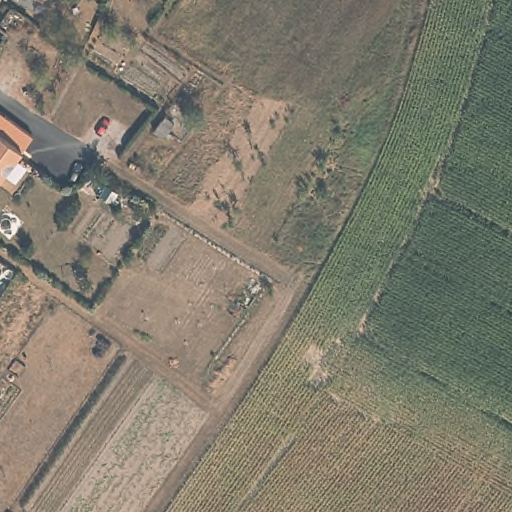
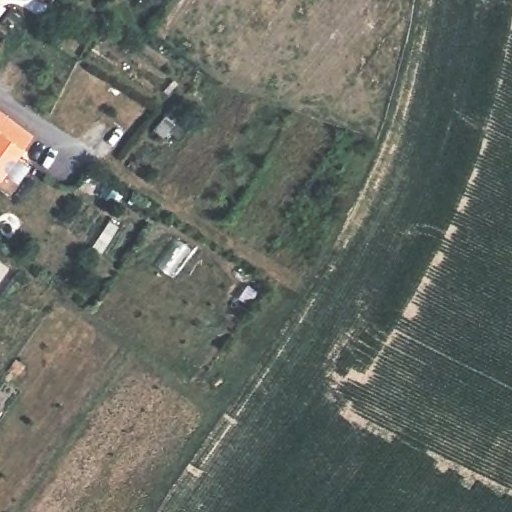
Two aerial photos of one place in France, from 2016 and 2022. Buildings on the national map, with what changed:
unchanged [(9,35),(0,48),(0,22),(3,24),(8,26),(10,32),(9,35)]
unchanged [(6,175),(0,171),(0,109),(6,114),(9,110),(37,129),(6,175)]
unchanged [(0,266),(0,254),(5,258),(0,266)]

